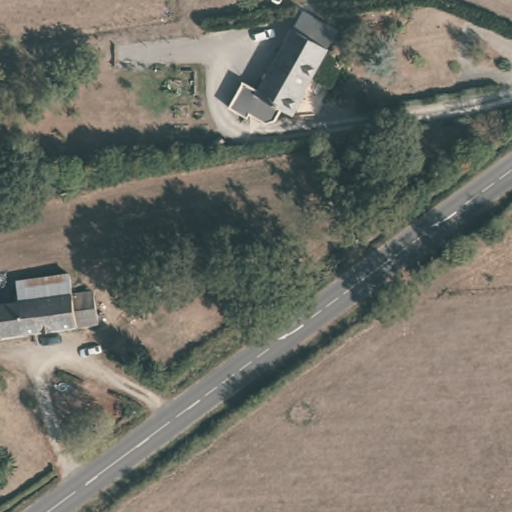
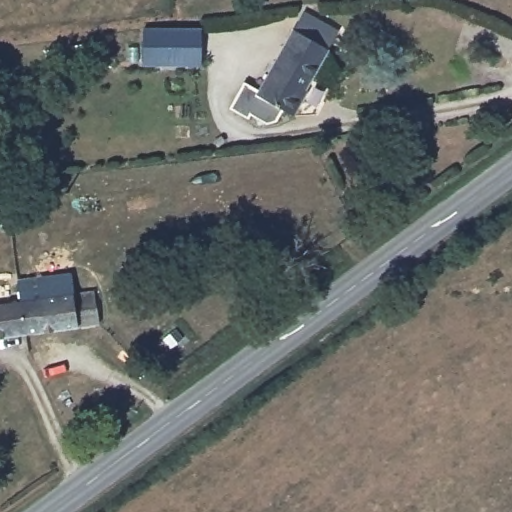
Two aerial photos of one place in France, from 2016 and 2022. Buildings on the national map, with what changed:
unchanged [(305,95),(308,96),(297,115),(283,107),(277,119),(266,121),(250,112),(249,116),(230,105),(245,80),(260,89),(295,28),(297,29),(305,12),(337,26),(325,45),(331,48),(305,95)]
new [(202,65),(143,65),(142,27),(201,27),(202,65)]
unchanged [(75,307),(77,325),(30,330),(26,296),(93,290),(94,295),(99,295),(101,315),(91,315),(91,305),(75,307)]
unchanged [(30,330),(0,333),(0,299),(26,296),(30,330)]

